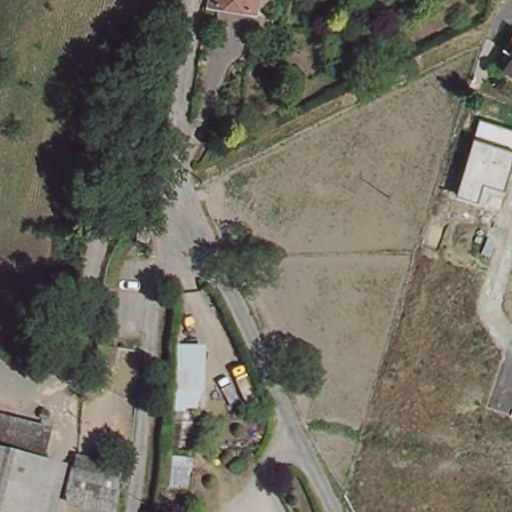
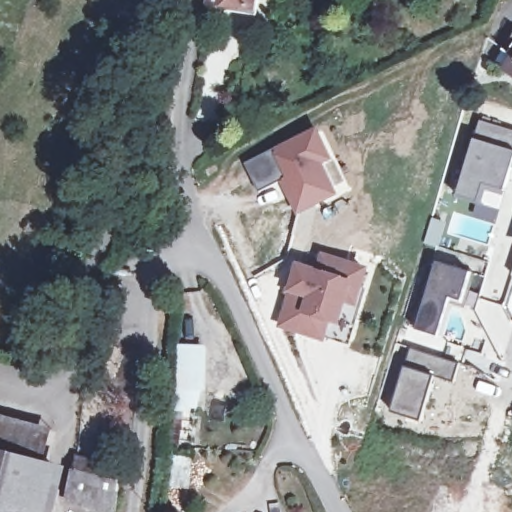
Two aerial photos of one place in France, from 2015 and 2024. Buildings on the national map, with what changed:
unchanged [(253,5),(219,0),(253,0),(253,5)]
unchanged [(512,64),(512,68),(511,67),(512,64)]
unchanged [(505,194),(485,188),(480,204),(456,198),(479,120),(512,129),(512,167),(505,194)]
new [(335,158),(325,165),(339,193),(299,215),(282,181),(260,192),(246,162),(318,126),(335,158)]
unchanged [(139,225),(149,226),(148,240),(137,239),(139,225)]
new [(300,266),(320,272),(324,256),(364,268),(359,285),(349,282),(338,318),(328,315),(323,335),(283,323),(300,266)]
new [(472,271),(477,273),(466,306),(450,301),(439,334),(451,338),(445,356),(412,347),(437,261),(472,271)]
new [(328,315),(338,318),(349,282),(359,285),(363,286),(347,342),(323,335),(328,315)]
unchanged [(99,342),(109,344),(106,363),(96,361),(99,342)]
new [(180,445),(172,444),(177,391),(176,345),(206,345),(207,390),(183,390),(184,414),(180,445)]
new [(445,356),(461,361),(456,380),(437,374),(435,382),(424,420),(393,411),(412,347),(445,356)]
unchanged [(51,427),(43,458),(0,447),(0,414),(51,427)]
unchanged [(43,458),(49,460),(35,512),(0,512),(0,447),(43,458)]
unchanged [(59,503),(72,457),(126,468),(116,510),(59,503)]

